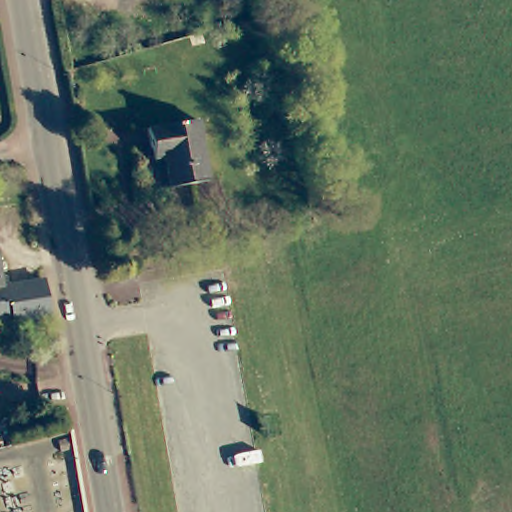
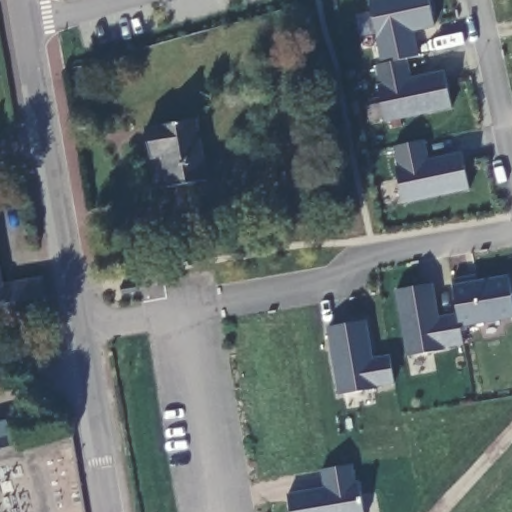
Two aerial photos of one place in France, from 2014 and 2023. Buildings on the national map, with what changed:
new [(415,33),(419,57),(406,60),(383,66),(370,0),(429,0),(434,27),(415,33)]
new [(406,60),(412,78),(444,72),(452,108),(385,122),(378,85),(382,84),(378,67),(406,60)]
unchanged [(198,121),(205,182),(148,188),(143,147),(149,146),(147,127),(198,121)]
new [(425,141),(429,161),(460,153),(469,189),(404,203),(397,166),(399,166),(394,148),(425,141)]
unchanged [(5,286),(0,287),(0,262),(5,286)]
new [(458,314),(455,283),(510,275),(512,290),(512,320),(460,326),(458,314)]
unchanged [(5,286),(4,283),(44,276),(49,313),(0,321),(0,287),(5,286)]
new [(433,283),(439,318),(458,314),(463,345),(406,356),(396,291),(433,283)]
new [(363,324),(370,362),(387,359),(391,386),(374,389),(375,392),(336,398),(325,330),(363,324)]
new [(14,446),(0,450),(0,421),(6,419),(14,446)]
new [(322,469),(352,464),(355,483),(360,482),(364,512),(290,512),(287,494),(325,487),(322,469)]

